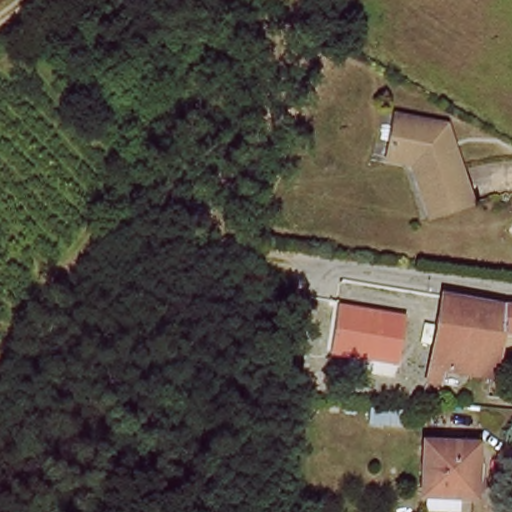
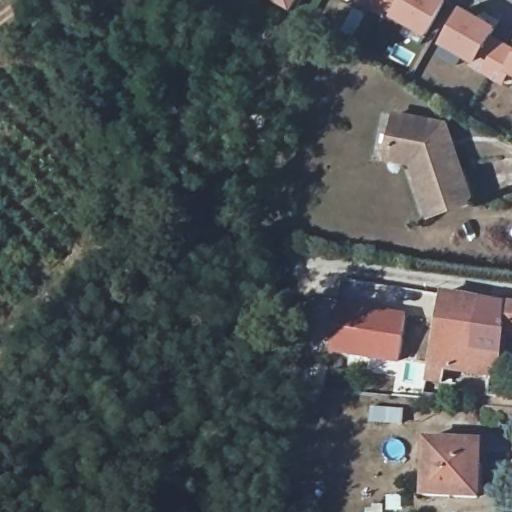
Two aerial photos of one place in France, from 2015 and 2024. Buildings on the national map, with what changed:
new [(268,0),(296,0),(289,12),(268,0)]
new [(395,15),(378,6),(367,0),(445,0),(427,34),(395,15)]
new [(510,76),(501,87),(468,69),(473,65),(444,50),(450,26),(465,8),(497,26),(493,34),(512,44),(512,77),(510,76)]
unchanged [(469,199),(423,214),(405,161),(380,156),(390,109),(442,119),(469,199)]
unchanged [(417,340),(420,321),(427,322),(431,298),(442,300),(443,293),(502,301),(512,302),(512,328),(503,328),(498,374),(447,367),(446,380),(427,378),(433,344),(417,340)]
unchanged [(404,312),(395,364),(328,353),(339,301),(404,312)]
unchanged [(425,439),(477,442),(477,497),(423,495),(425,439)]

